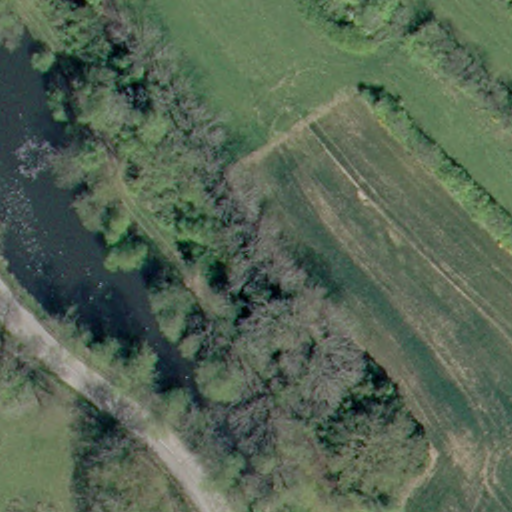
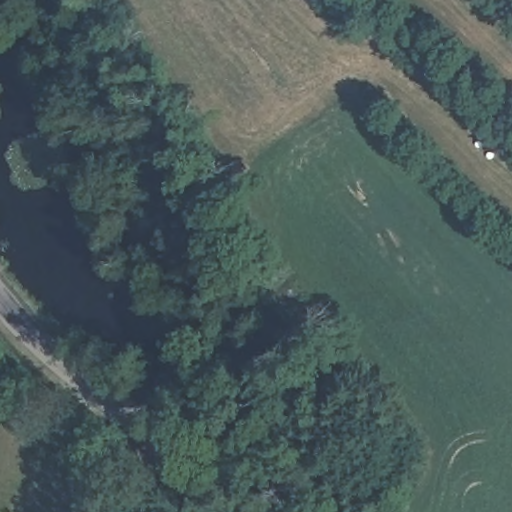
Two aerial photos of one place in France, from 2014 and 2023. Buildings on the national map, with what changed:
[]

